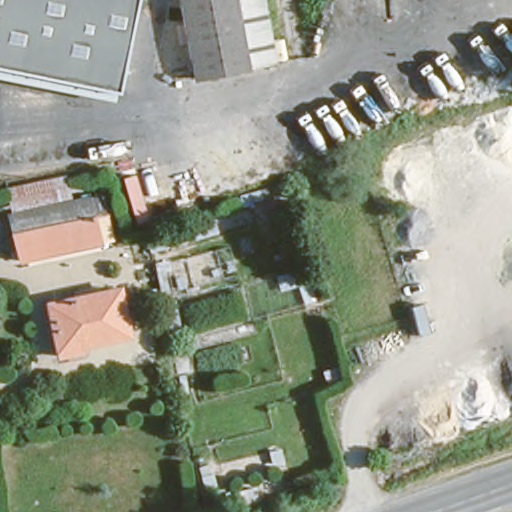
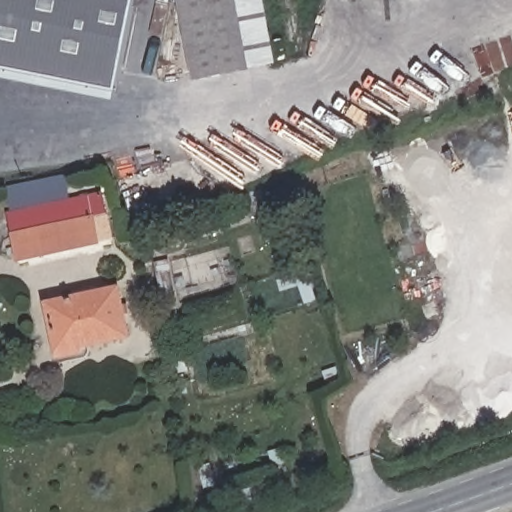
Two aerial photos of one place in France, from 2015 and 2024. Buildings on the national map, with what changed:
unchanged [(112,88),(0,68),(0,0),(135,0),(120,90),(112,88)]
unchanged [(264,0),(275,59),(190,76),(176,0),(264,0)]
unchanged [(9,205),(5,181),(62,172),(65,196),(9,205)]
unchanged [(99,190),(109,239),(17,256),(9,205),(65,196),(99,190)]
unchanged [(151,276),(147,265),(162,260),(166,272),(151,276)]
unchanged [(82,340),(84,347),(59,352),(47,301),(118,285),(121,301),(128,300),(130,312),(125,313),(128,331),(82,340)]

